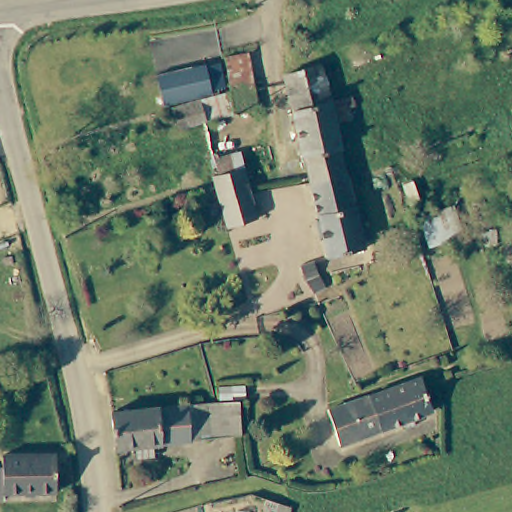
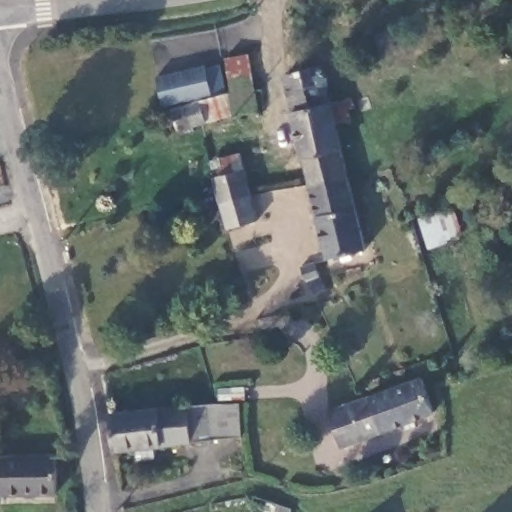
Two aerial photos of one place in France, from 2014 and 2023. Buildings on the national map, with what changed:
unchanged [(227,49),(269,52),(267,89),(229,86),(227,49)]
unchanged [(165,103),(157,71),(205,59),(214,90),(229,86),(239,121),(223,124),(183,133),(176,100),(165,103)]
unchanged [(307,148),(295,91),(295,67),(327,62),(328,66),(344,139),(307,148)]
unchanged [(313,178),(307,148),(344,139),(352,169),(313,178)]
unchanged [(220,200),(214,176),(213,168),(226,166),(247,161),(254,192),(220,200)]
unchanged [(313,178),(352,169),(370,241),(356,245),(331,252),(313,178)]
unchanged [(226,229),(220,200),(254,192),(261,221),(226,229)]
unchanged [(456,200),(464,236),(427,248),(415,211),(456,200)]
unchanged [(335,287),(326,292),(310,261),(323,256),(335,287)]
unchanged [(428,410),(351,443),(339,410),(356,403),(416,375),(428,410)]
unchanged [(214,440),(213,401),(245,400),(251,439),(214,440)]
unchanged [(108,403),(208,401),(209,440),(116,441),(108,403)]
unchanged [(3,496),(0,496),(0,458),(16,458),(16,448),(60,448),(60,489),(17,488),(5,486),(3,496)]

